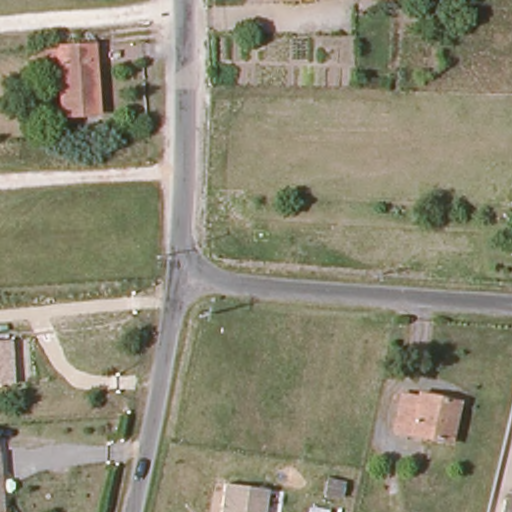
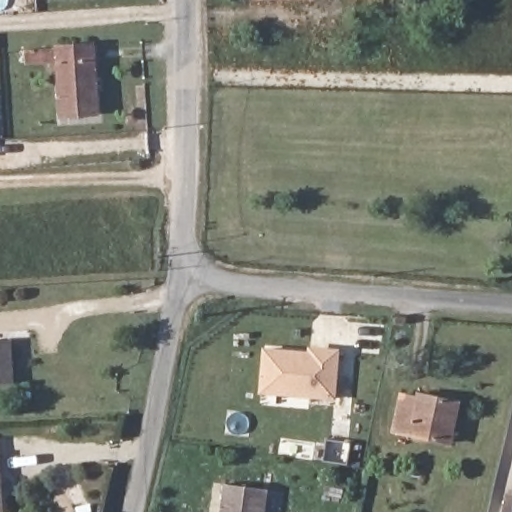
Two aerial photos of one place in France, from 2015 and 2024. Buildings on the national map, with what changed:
unchanged [(99,113),(64,114),(61,62),(28,64),(27,48),(60,46),(96,44),(99,113)]
unchanged [(0,385),(0,339),(5,339),(7,384),(0,385)]
new [(311,351),(312,346),(342,349),(337,401),(258,394),(262,347),(311,351)]
unchanged [(455,442),(422,434),(395,428),(405,394),(425,399),(426,394),(431,395),(463,404),(455,442)]
unchanged [(328,481),(343,483),(341,499),(326,496),(328,481)]
unchanged [(226,484),(267,492),(263,512),(221,512),(226,484)]
unchanged [(512,512),(509,512),(512,501),(512,512)]

